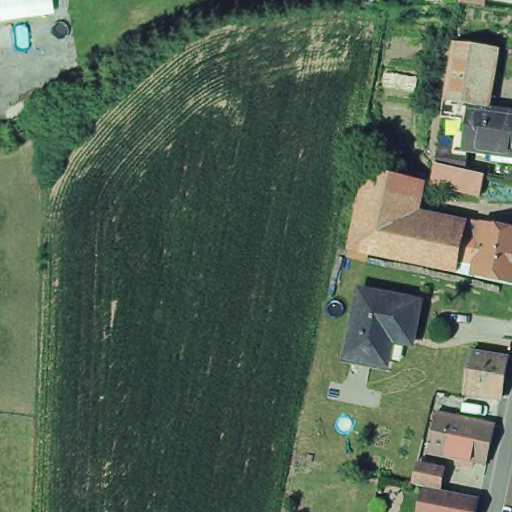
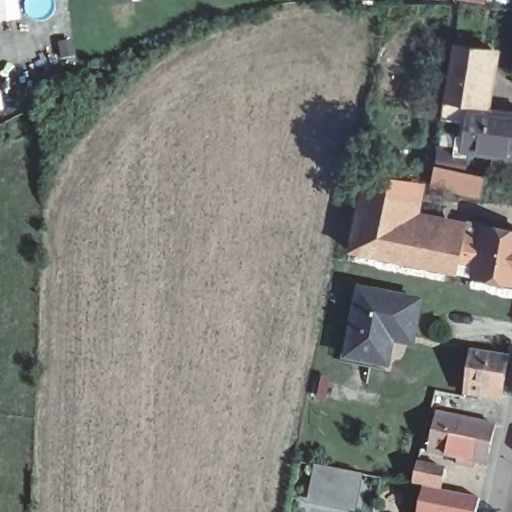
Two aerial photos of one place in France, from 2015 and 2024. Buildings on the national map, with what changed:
unchanged [(471,0),(483,0),(482,2),(471,0)]
unchanged [(463,150),(469,106),(444,102),(447,80),(450,66),(454,44),(487,49),(484,71),(482,85),(478,107),(512,112),(512,157),(463,150)]
unchanged [(435,165),(440,142),(458,146),(457,152),(467,155),(463,171),(435,165)]
unchanged [(482,176),(477,194),(432,184),(434,165),(482,176)]
unchanged [(365,175),(410,185),(400,229),(392,265),(348,256),(365,175)]
unchanged [(512,237),(512,289),(471,281),(474,268),(459,265),(455,278),(415,270),(392,265),(400,229),(463,241),(478,245),(481,230),(512,237)]
unchanged [(337,357),(347,308),(352,310),(357,285),(409,296),(420,298),(414,332),(412,340),(402,338),(389,335),(383,361),(382,367),(337,357)]
unchanged [(468,353),(506,358),(499,398),(462,390),(468,353)]
unchanged [(437,408),(495,420),(487,460),(430,447),(437,408)]
unchanged [(473,512),(417,512),(422,487),(411,485),(416,462),(443,469),(439,491),(475,498),(473,512)]
new [(312,464),(364,474),(356,512),(350,512),(305,501),(312,464)]

